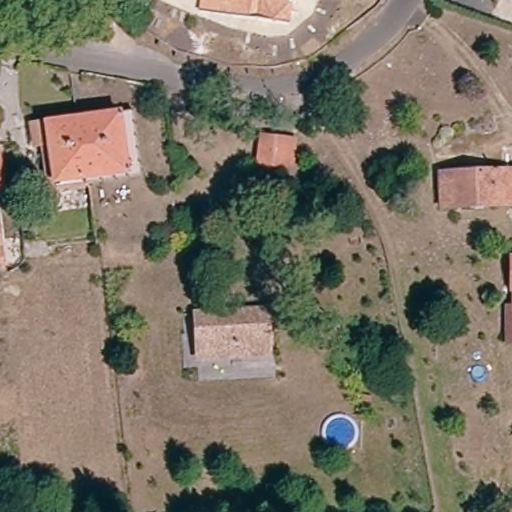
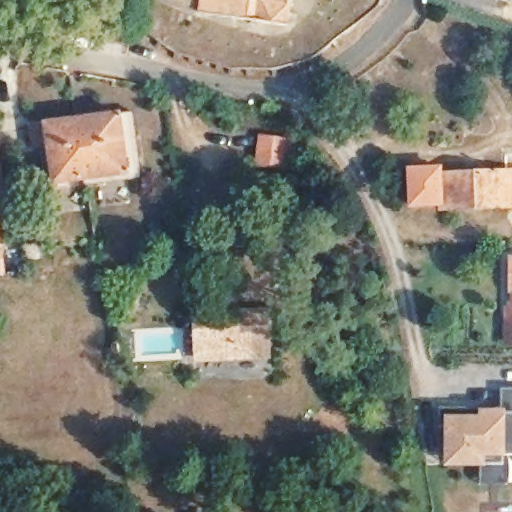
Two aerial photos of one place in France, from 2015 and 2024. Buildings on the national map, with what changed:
unchanged [(288,26),(254,22),(229,14),(230,0),(286,0),(285,1),(288,26)]
unchanged [(49,190),(43,151),(38,151),(28,153),(26,133),(72,126),(130,117),(137,177),(83,185),(49,190)]
unchanged [(294,170),(285,169),(259,165),(263,139),(289,141),(297,143),(294,170)]
new [(405,208),(403,166),(439,165),(439,176),(441,206),(405,208)]
unchanged [(441,211),(439,176),(512,173),(512,208),(441,211)]
unchanged [(501,351),(501,315),(509,315),(509,298),(506,298),(506,264),(512,264),(512,351),(501,351)]
unchanged [(202,318),(268,315),(271,359),(211,362),(199,362),(197,318),(202,318)]
new [(507,453),(506,481),(483,482),(481,467),(445,466),(444,425),(440,426),(441,406),(480,408),(502,409),(502,389),(512,389),(512,453),(507,453)]

